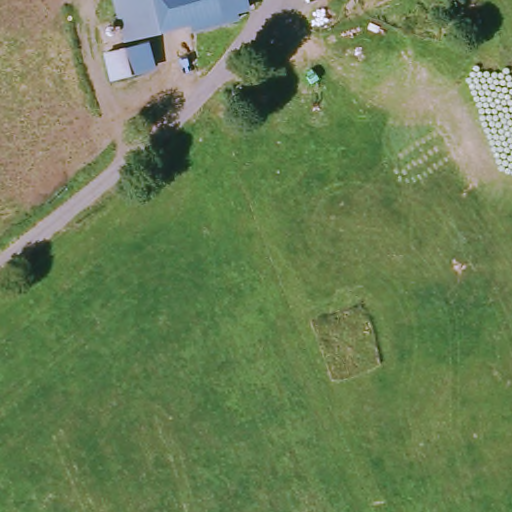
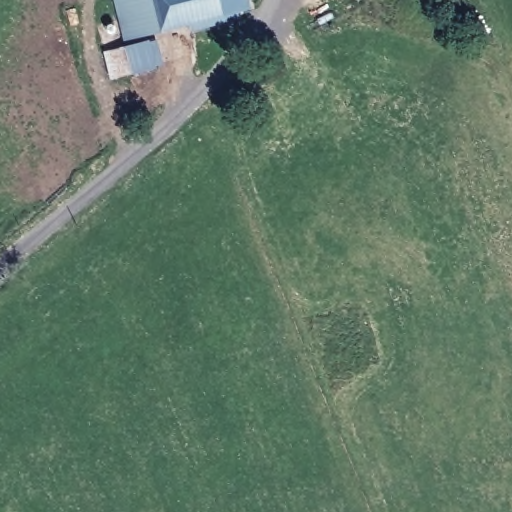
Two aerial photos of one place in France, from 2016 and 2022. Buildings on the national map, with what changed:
unchanged [(119,40),(110,0),(152,0),(159,29),(119,40)]
unchanged [(230,11),(232,19),(188,30),(186,22),(159,29),(152,0),(241,0),(243,8),(230,11)]
unchanged [(143,42),(150,66),(105,78),(99,53),(143,42)]

